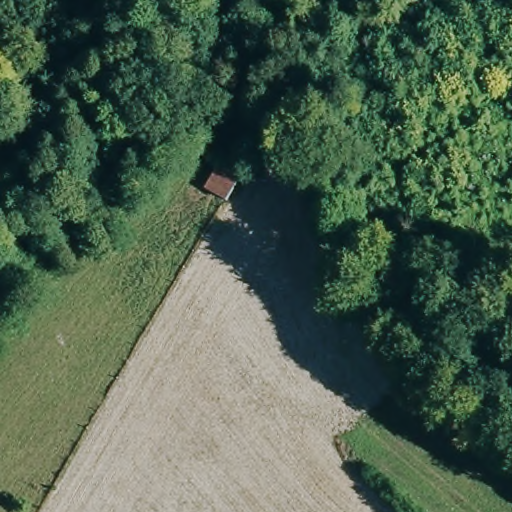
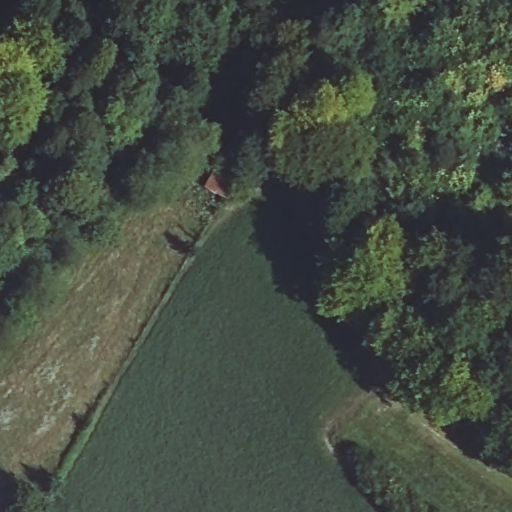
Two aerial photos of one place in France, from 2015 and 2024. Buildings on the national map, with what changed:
unchanged [(218,163),(244,179),(227,206),(202,190),(218,163)]

